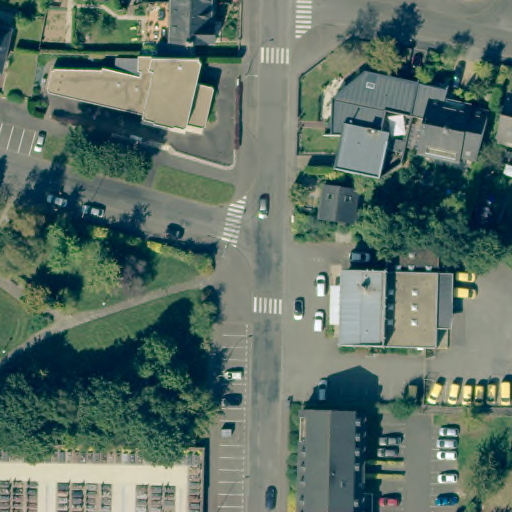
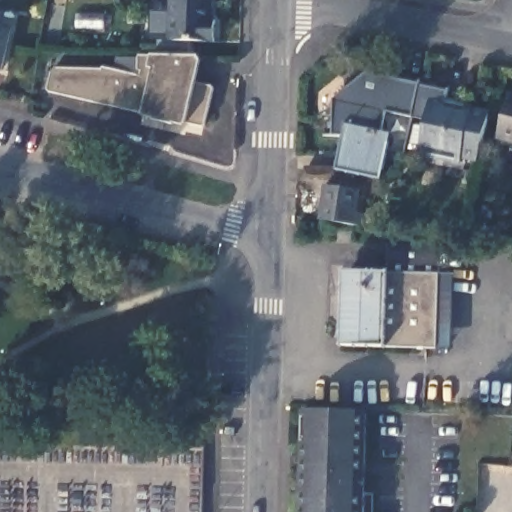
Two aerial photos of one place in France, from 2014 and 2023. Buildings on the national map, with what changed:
unchanged [(212,21),(215,20),(214,41),(171,40),(172,0),(212,0),(212,21)]
unchanged [(12,28),(4,70),(0,70),(0,26),(12,28)]
unchanged [(199,83),(214,86),(215,88),(206,128),(48,91),(53,70),(54,70),(55,67),(104,68),(104,66),(115,68),(117,55),(204,58),(199,83)]
unchanged [(343,138),(333,136),(335,100),(368,73),(419,84),(412,117),(388,111),(383,132),(393,134),(382,180),(337,170),(343,138)]
unchanged [(449,90),(448,98),(475,104),(474,107),(491,111),(479,157),(463,153),(461,163),(420,153),(428,120),(412,117),(419,84),(449,90)]
unchanged [(512,142),(501,139),(511,95),(512,95),(512,142)]
unchanged [(326,186),(364,191),(363,225),(324,222),(326,186)]
unchanged [(9,222),(11,230),(5,236),(0,236),(0,220),(1,220),(9,222)]
unchanged [(440,330),(439,349),(392,347),(342,347),(345,274),(386,274),(388,240),(438,243),(439,272),(458,273),(457,329),(440,330)]
unchanged [(365,512),(302,512),(305,410),(367,413),(365,512)]

